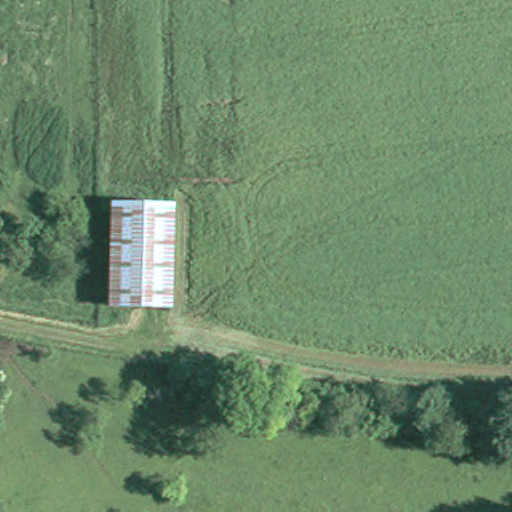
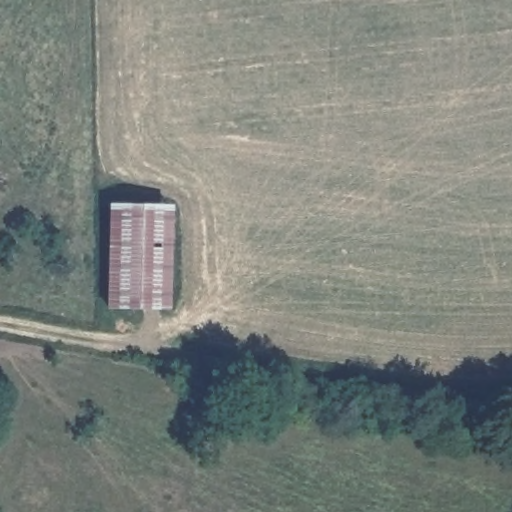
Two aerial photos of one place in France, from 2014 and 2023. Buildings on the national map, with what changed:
unchanged [(169,207),(168,308),(109,307),(111,205),(169,207)]

